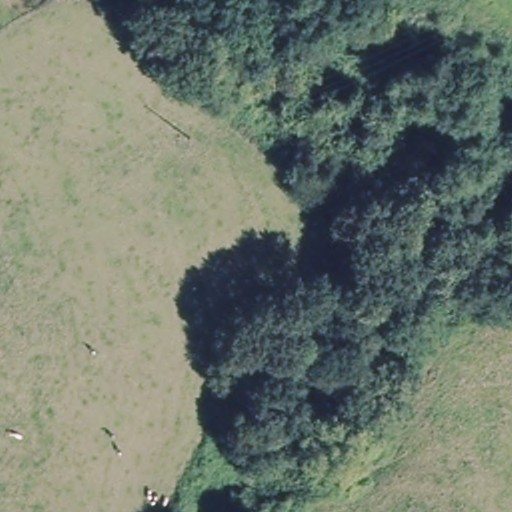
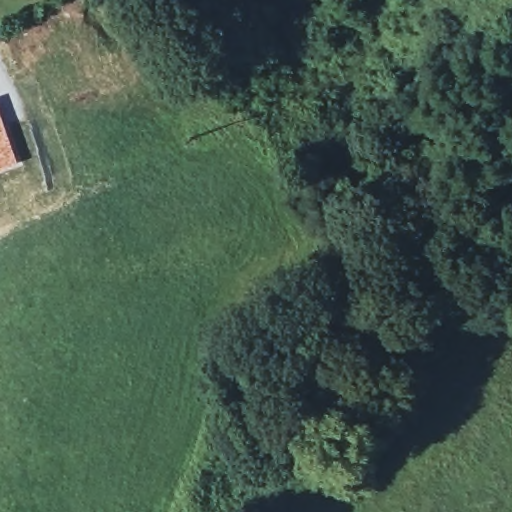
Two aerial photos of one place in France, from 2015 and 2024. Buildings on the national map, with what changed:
new [(20,162),(0,170),(0,105),(20,162)]

